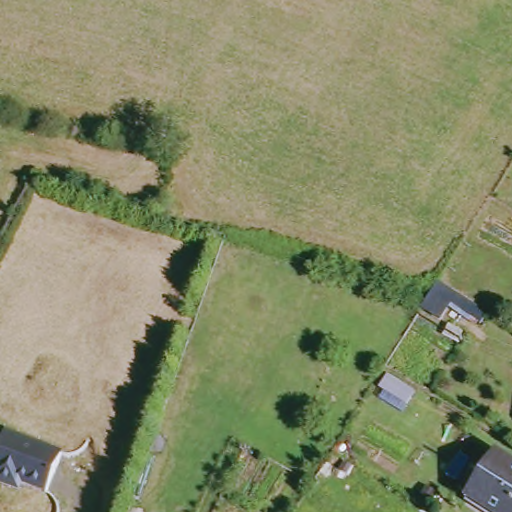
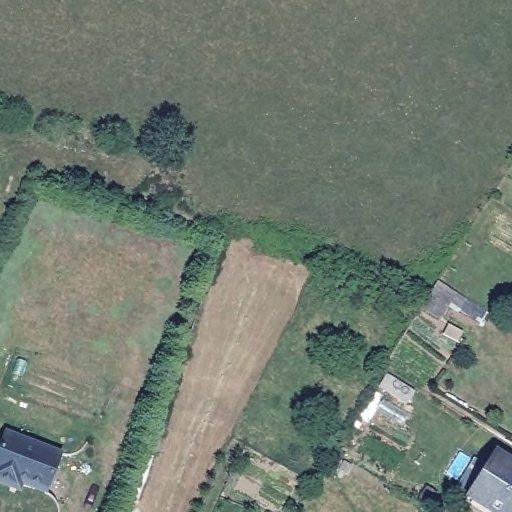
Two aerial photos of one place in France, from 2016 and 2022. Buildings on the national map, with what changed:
unchanged [(439,282),(489,315),(480,328),(452,309),(442,322),(423,310),(439,282)]
unchanged [(65,455),(49,496),(25,488),(22,494),(0,485),(0,451),(7,433),(65,455)]
unchanged [(496,512),(471,495),(502,449),(512,456),(512,512),(496,512)]

